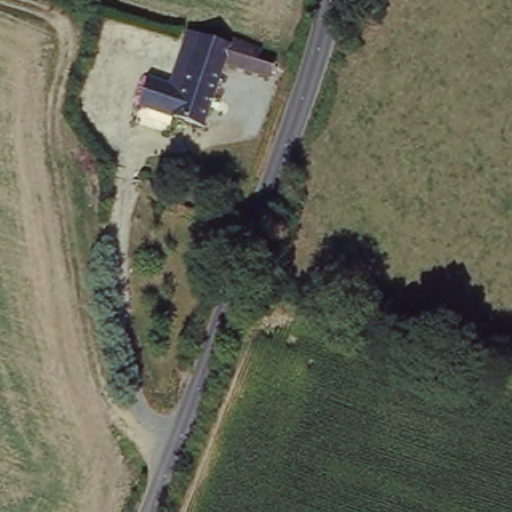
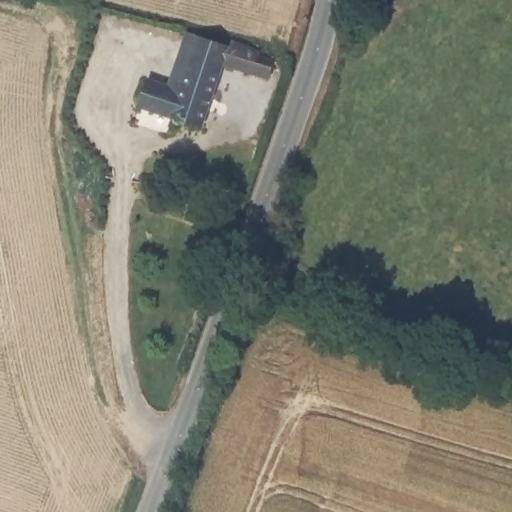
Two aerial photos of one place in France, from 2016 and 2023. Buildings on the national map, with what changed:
unchanged [(149,79),(169,87),(188,34),(200,38),(229,49),(232,44),(258,53),(258,57),(274,64),(269,79),(223,63),(202,128),(161,113),(139,106),(149,79)]

